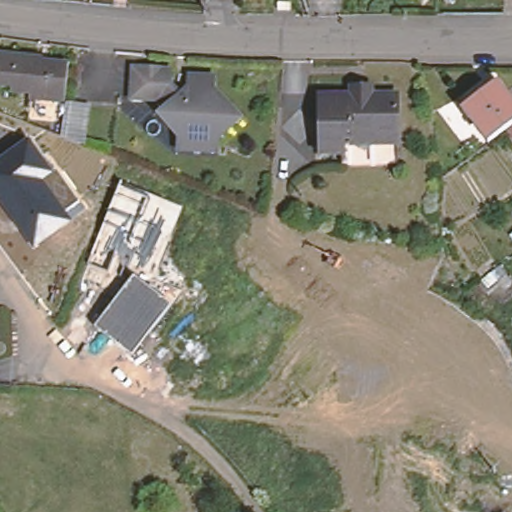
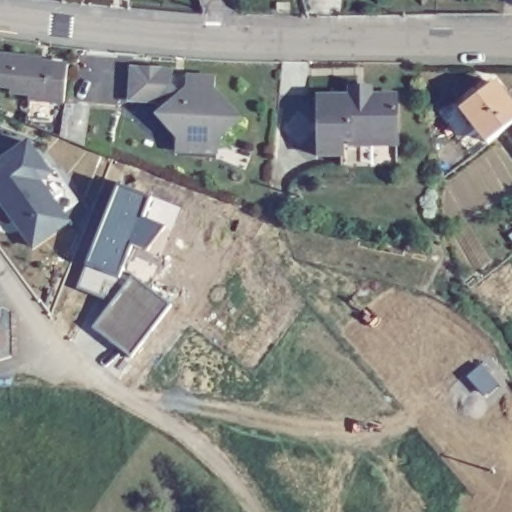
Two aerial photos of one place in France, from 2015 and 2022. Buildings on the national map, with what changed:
unchanged [(27,96),(9,94),(10,90),(0,88),(0,56),(37,60),(37,63),(65,65),(61,105),(27,101),(27,96)]
unchanged [(185,140),(185,134),(153,106),(158,100),(150,93),(123,90),(127,58),(163,61),(162,77),(171,86),(180,76),(181,66),(205,69),(205,79),(243,112),(224,135),(223,142),(223,150),(184,147),(185,140)]
unchanged [(458,103),(494,77),(512,102),(512,118),(483,139),(458,103)]
unchanged [(347,83),(368,83),(368,91),(393,91),(395,161),(339,161),(339,151),(316,150),(315,91),(347,91),(347,83)]
unchanged [(0,161),(28,141),(52,176),(43,185),(71,225),(32,255),(0,208),(0,161)]
new [(150,201),(142,220),(165,229),(148,252),(133,243),(122,272),(133,276),(114,302),(78,290),(87,265),(118,186),(150,201)]
unchanged [(94,328),(133,276),(169,307),(132,358),(94,328)]

